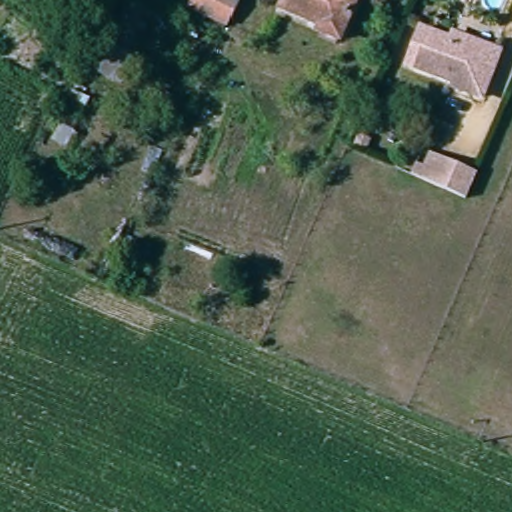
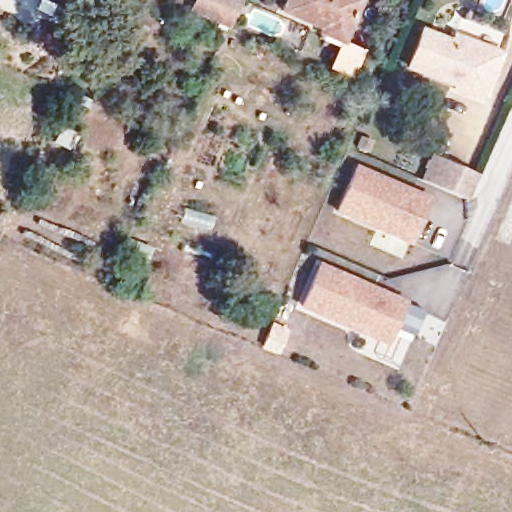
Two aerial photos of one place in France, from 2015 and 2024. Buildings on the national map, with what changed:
new [(81,18),(41,0),(89,0),(81,18)]
unchanged [(244,2),(232,26),(195,8),(199,0),(241,0),(244,2)]
unchanged [(346,39),(329,32),(330,26),(290,10),(293,0),(360,0),(346,39)]
unchanged [(483,98),(454,87),(456,83),(408,65),(422,29),(452,41),(453,35),(497,51),(500,53),(488,82),(483,98)]
new [(355,166),(431,198),(411,246),(333,214),(355,166)]
unchanged [(471,209),(427,190),(436,167),(480,186),(471,209)]
new [(318,263),(407,301),(405,304),(422,311),(408,343),(392,335),(387,347),(298,307),(318,263)]

